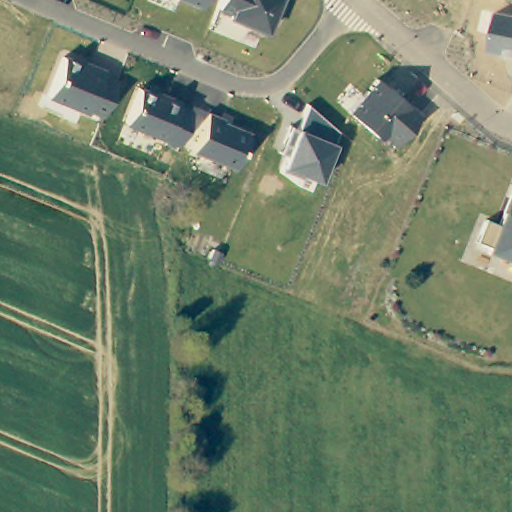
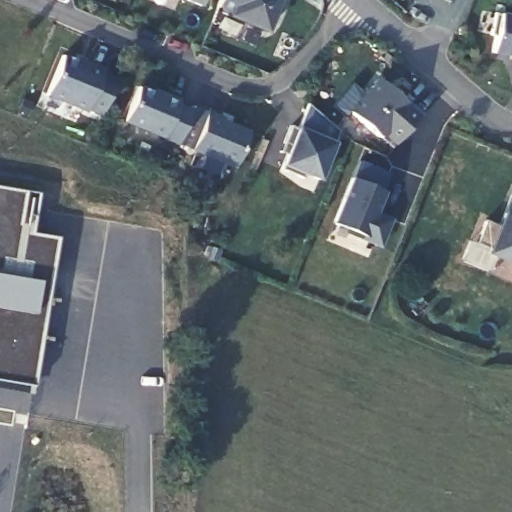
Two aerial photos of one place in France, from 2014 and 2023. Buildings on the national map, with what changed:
unchanged [(200,4),(189,0),(202,0),(200,4)]
unchanged [(264,32),(225,18),(228,10),(217,7),(219,0),(279,0),(264,32)]
new [(452,3),(445,0),(453,0),(452,3)]
unchanged [(497,14),(512,17),(512,57),(491,52),(497,14)]
unchanged [(100,115),(85,108),(83,110),(45,95),(61,53),(103,69),(100,75),(114,80),(100,115)]
unchanged [(394,142),(385,135),(381,139),(348,112),(377,79),(418,115),(394,142)]
unchanged [(175,145),(122,123),(136,88),(190,110),(175,145)]
unchanged [(331,143),(316,180),(279,165),(296,126),(300,128),(308,105),(336,131),(331,143)]
unchanged [(234,167),(190,149),(206,113),(247,131),(234,167)]
new [(390,174),(375,212),(392,219),(380,248),(333,229),(335,225),(331,223),(350,177),(353,179),(358,161),(390,174)]
new [(32,394),(0,389),(0,186),(40,192),(33,232),(58,237),(33,385),(32,394)]
unchanged [(495,242),(481,236),(491,214),(504,219),(512,201),(512,254),(493,246),(495,242)]

